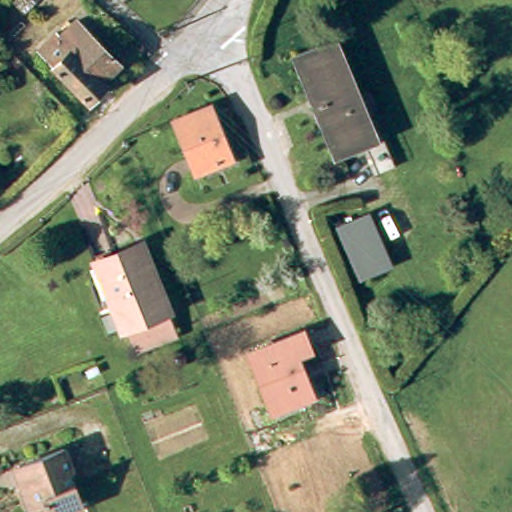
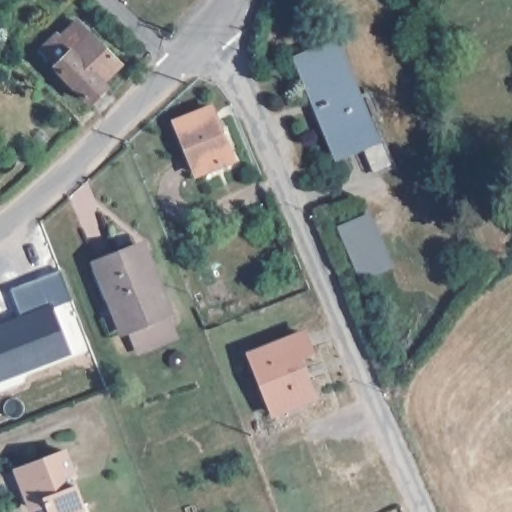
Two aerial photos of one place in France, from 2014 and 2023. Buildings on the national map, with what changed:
unchanged [(43,51),(61,35),(64,37),(81,21),(124,64),(107,81),(112,86),(94,104),(43,51)]
unchanged [(382,136),(371,140),(338,154),(299,57),(332,45),(356,101),(366,97),(382,136)]
unchanged [(216,111),(238,163),(201,180),(179,126),(216,111)]
unchanged [(394,268),(355,281),(332,225),(369,210),(394,268)]
unchanged [(143,357),(135,337),(128,340),(113,303),(108,305),(95,276),(101,274),(99,269),(143,251),(171,323),(178,344),(143,357)]
new [(54,307),(71,354),(0,382),(0,322),(19,315),(10,288),(60,268),(73,300),(54,307)]
unchanged [(316,356),(299,363),(306,385),(311,382),(318,400),(277,417),(254,360),(309,337),(314,351),(316,356)]
unchanged [(74,474),(86,512),(51,512),(48,505),(34,510),(27,491),(19,470),(25,467),(69,452),(77,473),(74,474)]

